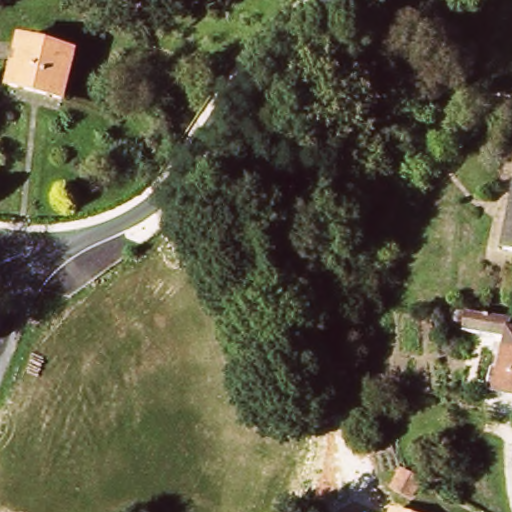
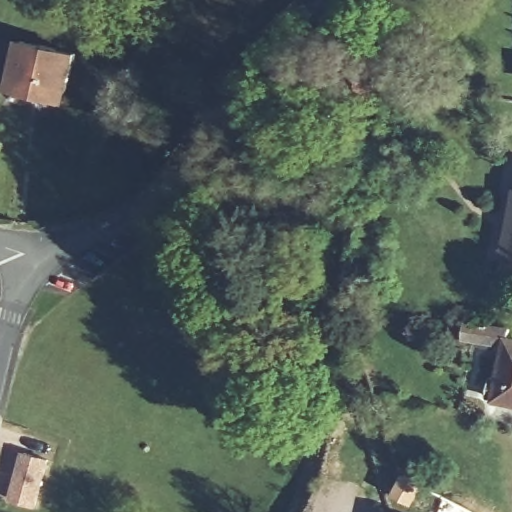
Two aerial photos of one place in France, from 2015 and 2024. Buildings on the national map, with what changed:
unchanged [(21,82),(31,41),(87,54),(77,96),(21,82)]
unchanged [(382,77),(379,94),(364,93),(366,75),(382,77)]
unchanged [(512,400),(485,396),(488,377),(497,377),(505,343),(492,340),(464,338),(465,319),(487,320),(512,324),(512,400)]
new [(20,453),(44,460),(31,506),(7,499),(20,453)]
unchanged [(420,501),(402,493),(409,477),(427,485),(420,501)]

